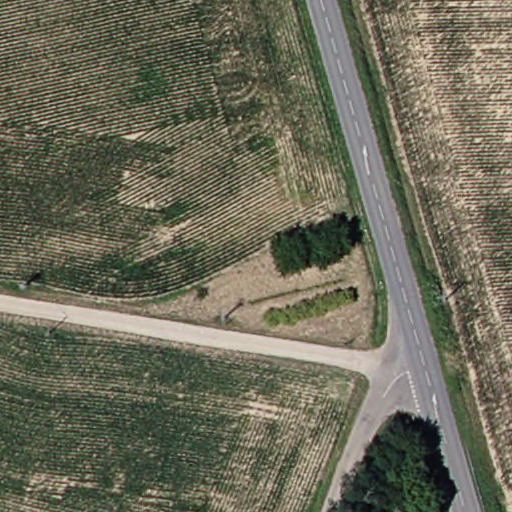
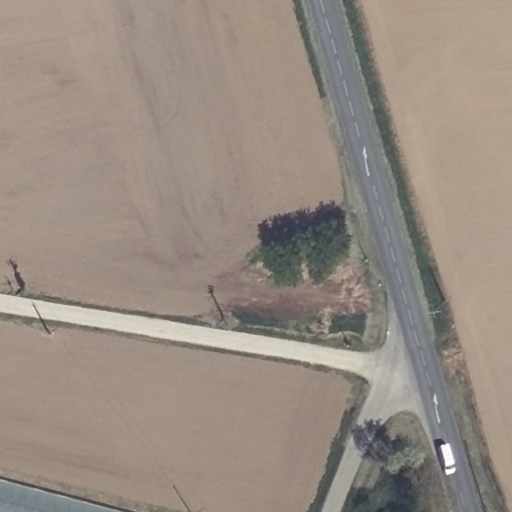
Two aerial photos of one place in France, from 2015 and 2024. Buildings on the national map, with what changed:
new [(0,483),(112,512),(0,512),(0,483)]

